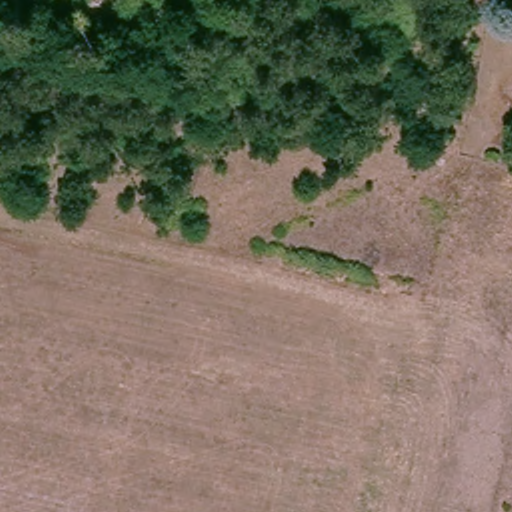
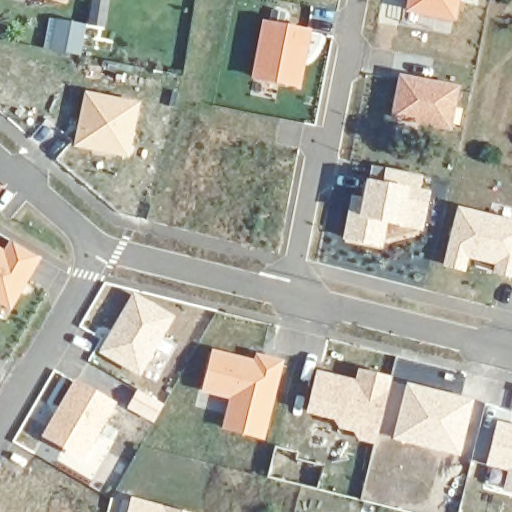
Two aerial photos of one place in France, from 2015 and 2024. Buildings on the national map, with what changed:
new [(51,0),(67,0),(66,5),(51,0)]
new [(302,90),(252,80),(263,21),(313,31),(302,90)]
new [(452,131),(391,119),(400,74),(461,86),(452,131)]
new [(141,104),(130,159),(75,148),(86,93),(141,104)]
new [(382,248),(343,240),(352,196),(362,198),(367,180),(371,166),(423,177),(421,189),(431,192),(422,231),(399,226),(387,224),(382,248)]
new [(443,267),(459,207),(512,220),(512,279),(493,274),(495,266),(470,260),(467,273),(443,267)]
new [(5,251),(11,240),(43,259),(12,312),(0,305),(0,249),(5,251)]
new [(99,353),(134,292),(176,317),(141,378),(99,353)]
new [(266,441),(223,430),(230,400),(202,393),(215,344),(286,361),(266,441)]
new [(305,420),(317,371),(356,381),(359,369),(393,378),(378,438),(305,420)]
new [(76,379),(119,404),(85,462),(43,437),(76,379)]
new [(461,458),(394,440),(407,386),(475,403),(461,458)]
new [(508,472),(487,467),(498,422),(512,426),(512,494),(502,492),(508,472)]
new [(132,499),(183,512),(128,512),(132,499)]

